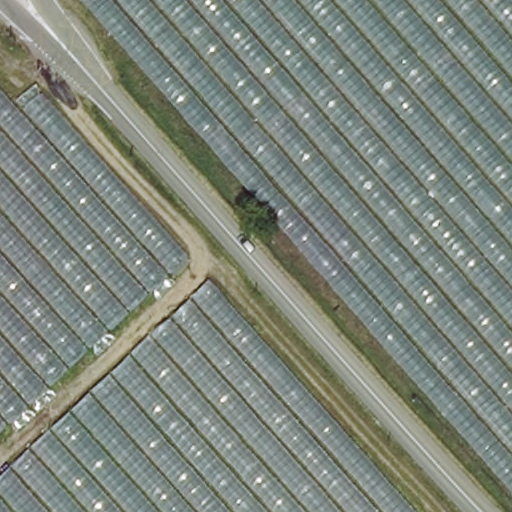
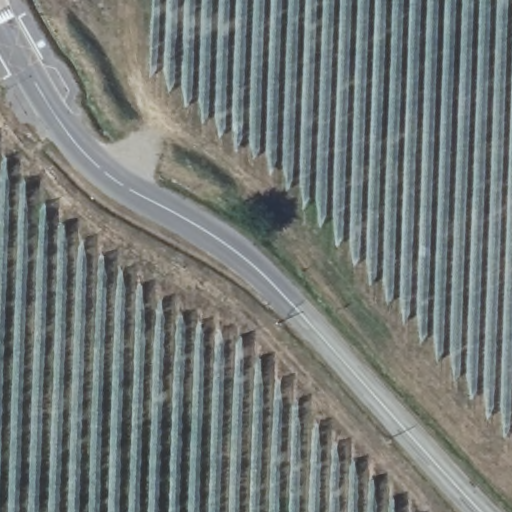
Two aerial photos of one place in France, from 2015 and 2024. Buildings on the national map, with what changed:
demolished [(78,0),(512,0),(512,494),(78,0)]
demolished [(0,87),(16,107),(40,91),(223,294),(411,512),(0,512),(0,87)]

